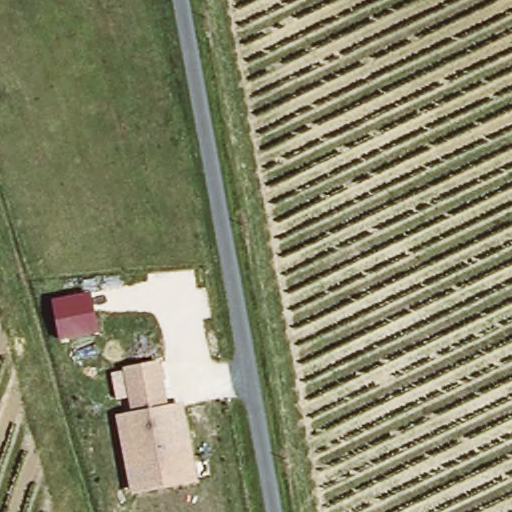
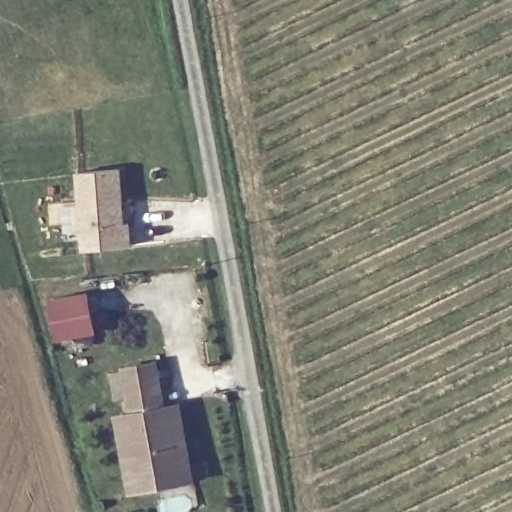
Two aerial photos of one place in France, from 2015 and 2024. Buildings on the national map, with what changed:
new [(87,249),(84,170),(127,170),(127,225),(132,225),(132,248),(87,249)]
unchanged [(92,290),(101,331),(60,340),(52,300),(92,290)]
unchanged [(134,411),(124,366),(160,358),(170,403),(184,400),(199,482),(130,495),(116,415),(134,411)]

